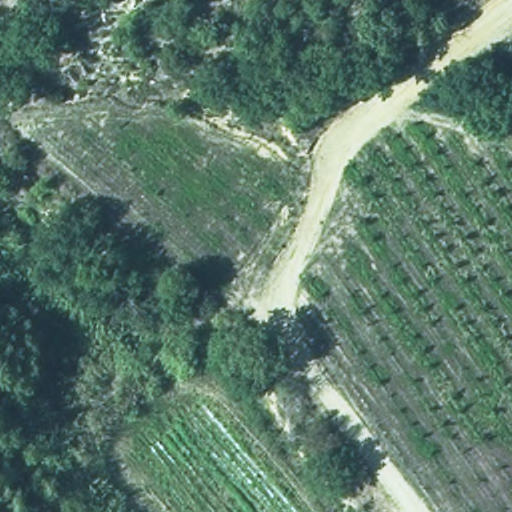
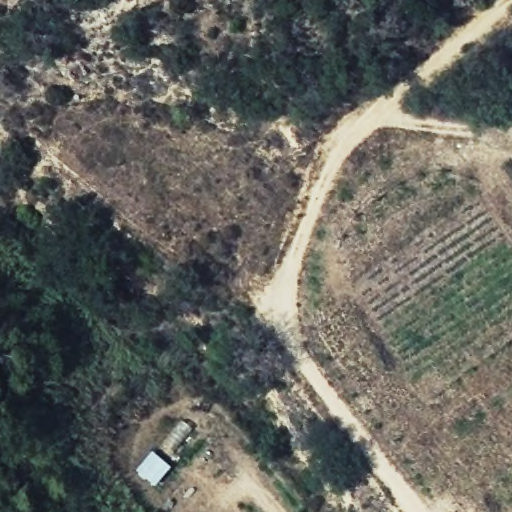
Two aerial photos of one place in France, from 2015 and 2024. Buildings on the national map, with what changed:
[]

